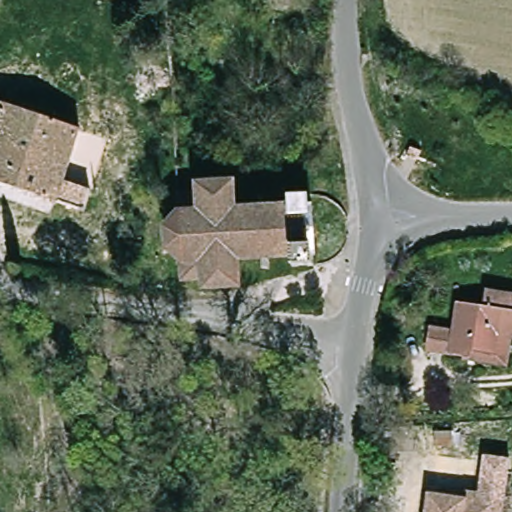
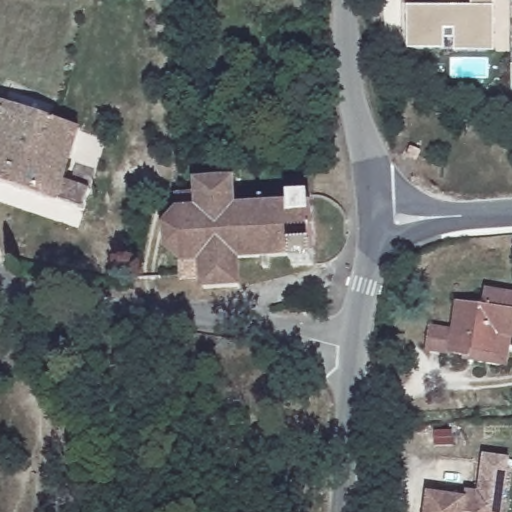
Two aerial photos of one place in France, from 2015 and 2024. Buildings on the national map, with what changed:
new [(472,7),(472,0),(495,0),(494,6),(495,51),(454,52),(454,39),(445,39),(445,49),(407,50),(407,7),(472,7)]
unchanged [(87,131),(71,177),(97,188),(88,213),(0,182),(0,135),(10,105),(87,131)]
unchanged [(228,287),(209,288),(209,281),(208,274),(187,274),(185,256),(174,246),(173,232),(172,224),(184,211),(183,196),(206,193),(205,184),(236,182),(238,210),(251,210),(264,209),(263,199),(268,198),(270,210),(294,208),(294,198),(313,198),(314,212),(317,213),(318,248),(319,259),(317,266),(309,268),(297,270),(296,258),(292,258),(271,259),(272,265),(272,269),(267,269),(266,267),(265,259),(241,260),(241,276),(241,285),(228,287)]
unchanged [(464,349),(434,346),(436,325),(461,327),(464,298),(491,301),(493,285),(512,287),(512,360),(464,356),(464,349)]
unchanged [(467,500),(468,492),(487,494),(491,456),(512,458),(512,506),(511,512),(432,512),(434,496),(467,500)]

